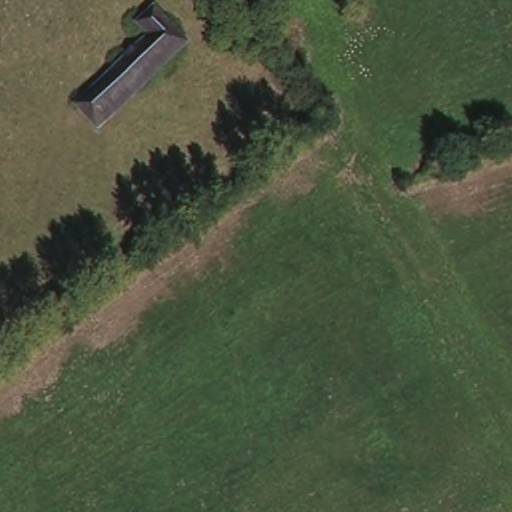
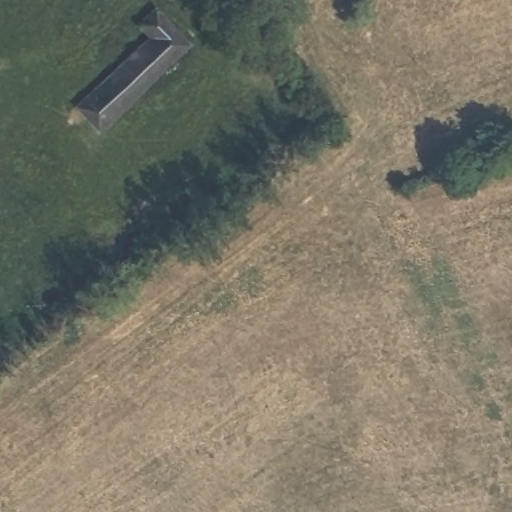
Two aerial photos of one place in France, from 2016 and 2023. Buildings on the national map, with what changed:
unchanged [(150,33),(141,21),(155,9),(184,42),(94,124),(73,103),(150,33)]

